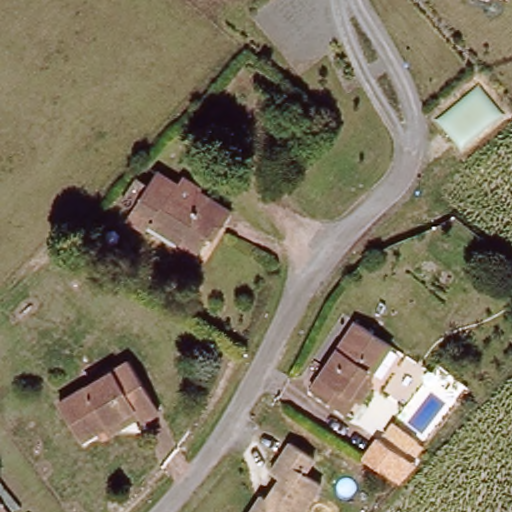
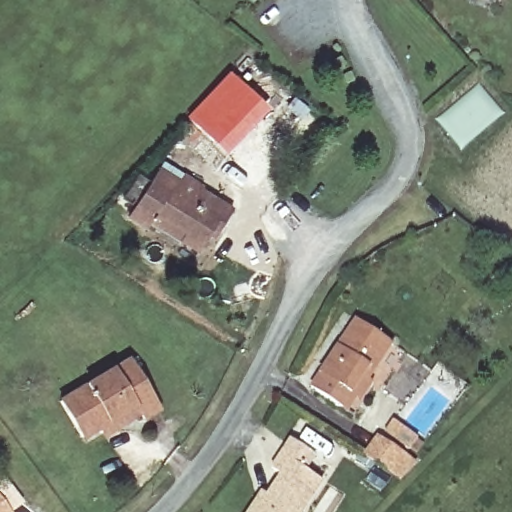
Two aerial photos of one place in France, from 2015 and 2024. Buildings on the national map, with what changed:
new [(229,70),(268,109),(226,154),(185,116),(229,70)]
new [(479,89),(500,115),(462,146),(440,119),(479,89)]
unchanged [(215,238),(210,235),(199,253),(180,241),(180,243),(150,224),(147,229),(129,217),(137,204),(124,196),(135,179),(147,188),(159,170),(179,183),(184,175),(202,187),(200,189),(232,210),(215,238)]
unchanged [(310,385),(358,319),(392,344),(376,368),(369,379),(374,382),(362,399),(355,392),(345,409),(337,404),(310,385)]
unchanged [(95,422),(79,432),(57,399),(127,356),(159,402),(140,414),(137,412),(102,433),(95,422)]
unchanged [(425,443),(413,459),(416,463),(401,482),(363,456),(377,437),(380,439),(392,422),(425,443)]
unchanged [(262,504),(282,476),(271,469),(290,439),(315,456),(305,469),(326,482),(306,512),(250,512),(258,500),(262,504)]
unchanged [(0,491),(1,491),(15,512),(0,512),(0,491)]

